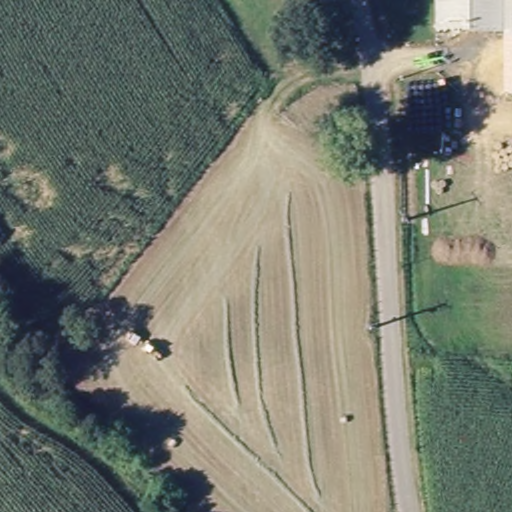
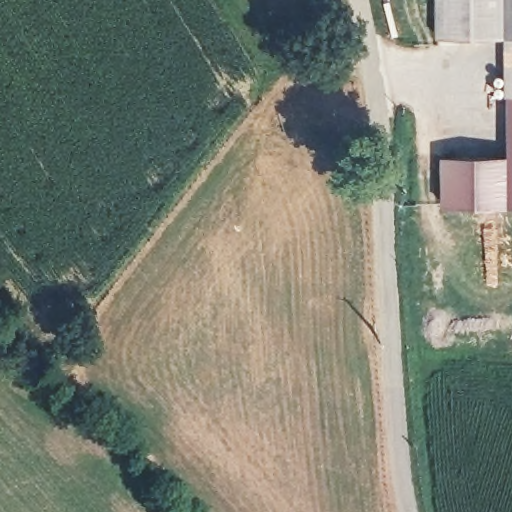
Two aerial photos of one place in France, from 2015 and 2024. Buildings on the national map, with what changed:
unchanged [(435,0),(512,0),(512,36),(506,36),(436,36),(435,33),(435,0)]
unchanged [(506,36),(512,36),(512,95),(505,96),(506,36)]
new [(512,95),(512,204),(442,205),(442,155),(507,153),(508,96),(512,95)]

